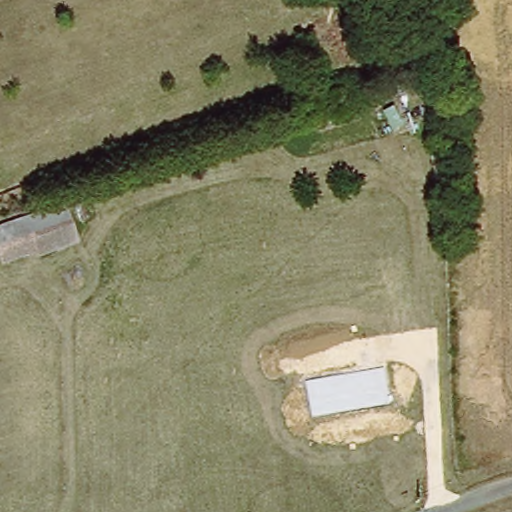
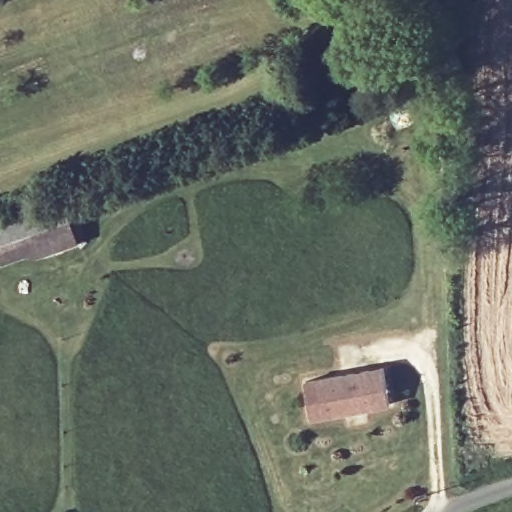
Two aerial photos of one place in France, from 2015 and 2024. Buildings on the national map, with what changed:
unchanged [(26,221),(65,207),(77,241),(39,256),(26,221)]
new [(0,265),(0,263),(0,225),(25,217),(26,221),(38,253),(0,265)]
new [(382,367),(389,406),(309,420),(304,381),(382,367)]

